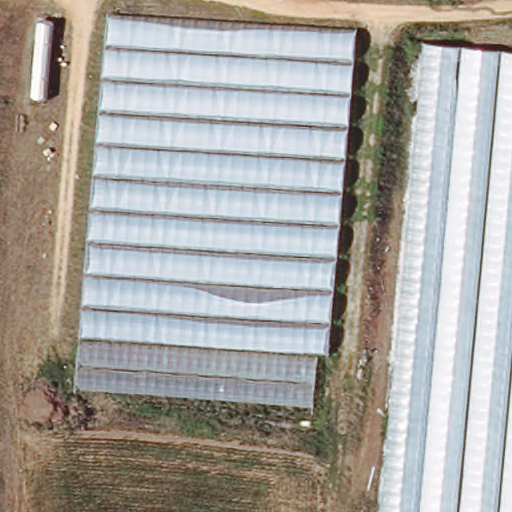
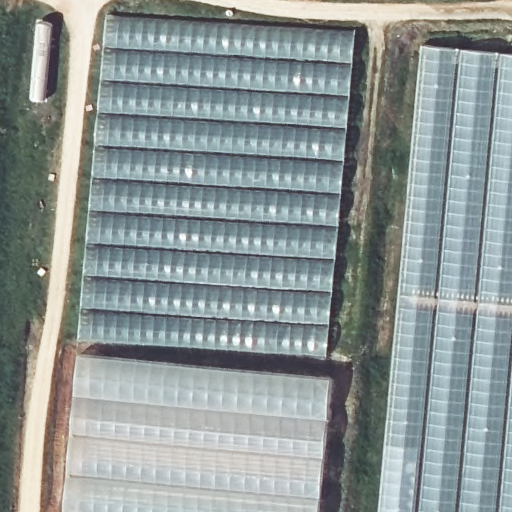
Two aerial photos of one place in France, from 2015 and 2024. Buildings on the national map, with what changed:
unchanged [(107,15),(355,29),(329,353),(80,339),(107,15)]
unchanged [(420,44),(512,53),(512,512),(379,512),(420,44)]
new [(78,355),(334,378),(322,512),(63,512),(78,355)]
demolished [(320,407),(319,434),(107,417),(109,391),(320,407)]

